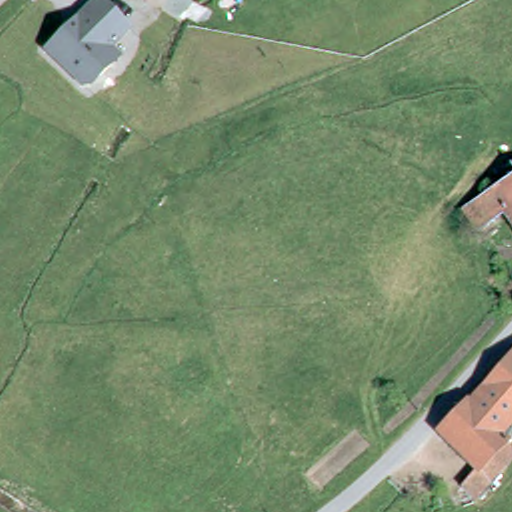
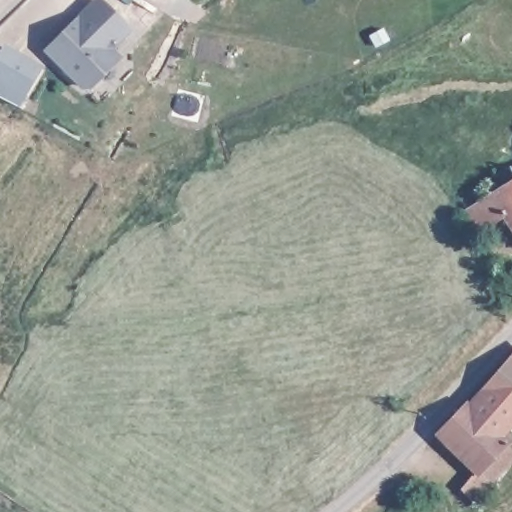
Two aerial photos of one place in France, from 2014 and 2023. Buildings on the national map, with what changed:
unchanged [(112,49),(122,57),(90,88),(81,88),(43,50),(91,0),(102,0),(132,29),(112,49)]
new [(43,68),(23,101),(0,87),(0,50),(3,44),(43,68)]
unchanged [(490,200),(512,187),(512,236),(502,219),(473,237),(462,218),(490,200)]
unchanged [(436,441),(442,434),(476,399),(512,356),(512,427),(501,439),(505,443),(512,450),(512,451),(473,494),(464,488),(477,472),(436,441)]

